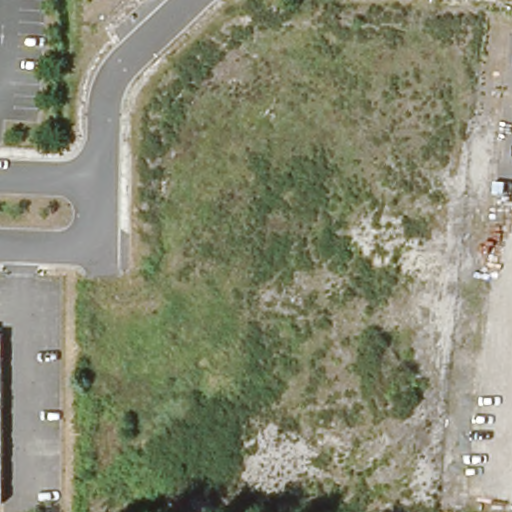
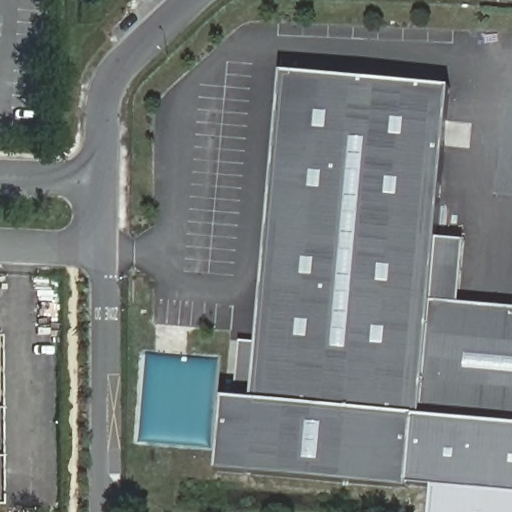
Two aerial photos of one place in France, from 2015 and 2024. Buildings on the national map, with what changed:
new [(415,415),(408,488),(219,471),(225,398),(236,399),(241,341),(260,342),(282,72),(450,87),(437,239),(464,240),(458,303),(512,307),(512,423),(415,415)]
new [(408,486),(415,415),(512,423),(512,512),(431,512),(433,488),(408,486)]

